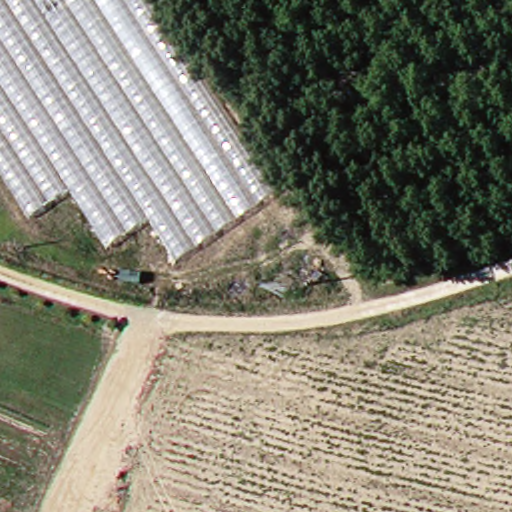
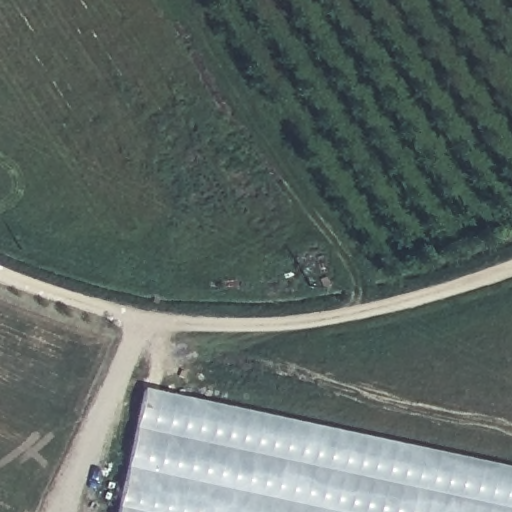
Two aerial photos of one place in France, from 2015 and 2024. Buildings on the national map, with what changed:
demolished [(142,0),(270,192),(170,266),(142,221),(102,251),(59,192),(23,217),(0,183),(0,0),(142,0)]
new [(512,470),(512,512),(117,512),(144,392),(512,470)]

